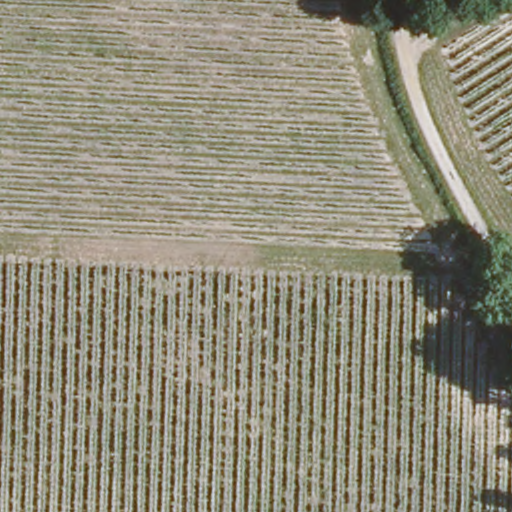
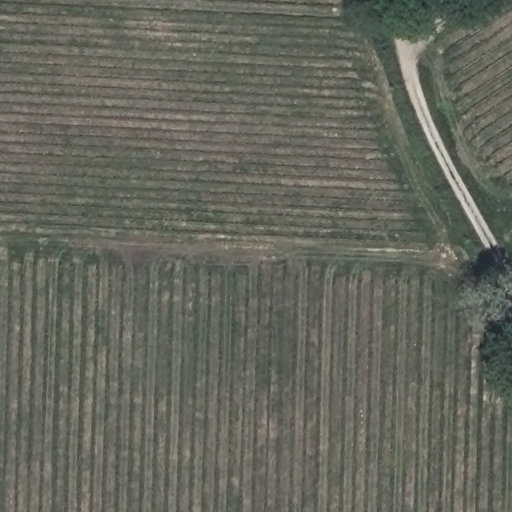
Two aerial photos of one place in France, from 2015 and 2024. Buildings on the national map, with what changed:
[]

